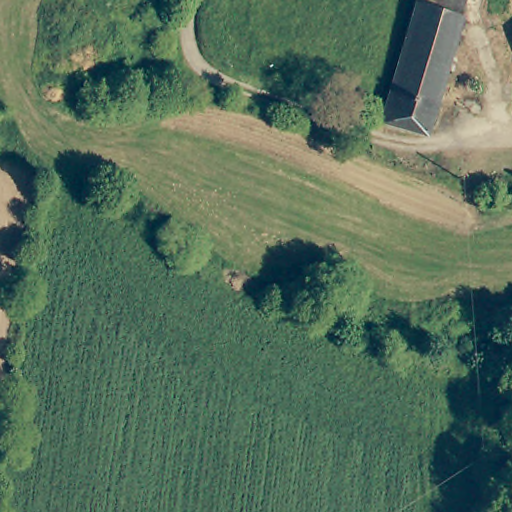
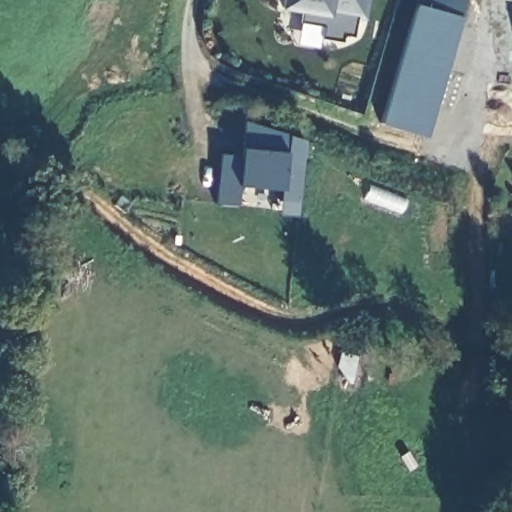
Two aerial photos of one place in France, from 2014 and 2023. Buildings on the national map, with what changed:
new [(366,20),(356,18),(352,37),(342,35),(340,41),(321,38),(322,26),(299,23),(300,13),(278,9),(279,0),(368,0),(366,20)]
unchanged [(466,11),(430,131),(385,118),(420,0),(425,0),(466,11)]
unchanged [(466,11),(425,0),(469,0),(466,11)]
new [(285,152),(285,159),(300,160),(296,217),(277,215),(280,189),(237,185),(235,204),(213,202),(219,152),(241,155),(241,148),(242,119),(286,134),(285,152)]

